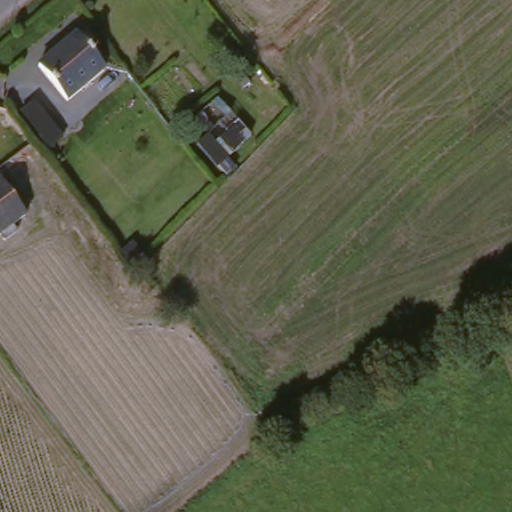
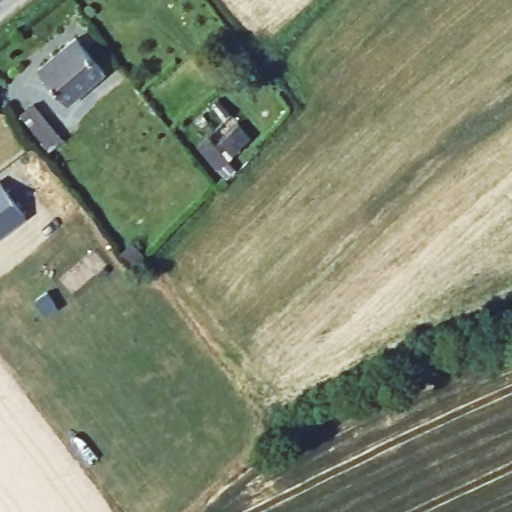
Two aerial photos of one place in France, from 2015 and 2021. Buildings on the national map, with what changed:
unchanged [(31,71),(76,42),(78,41),(101,76),(56,107),(31,71)]
unchanged [(25,217),(26,218),(0,237),(0,182),(25,217)]

